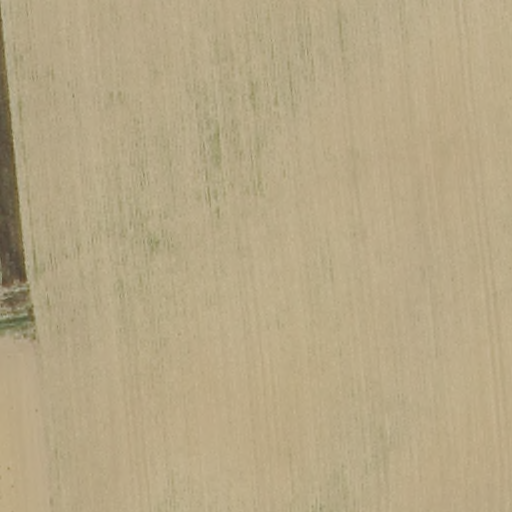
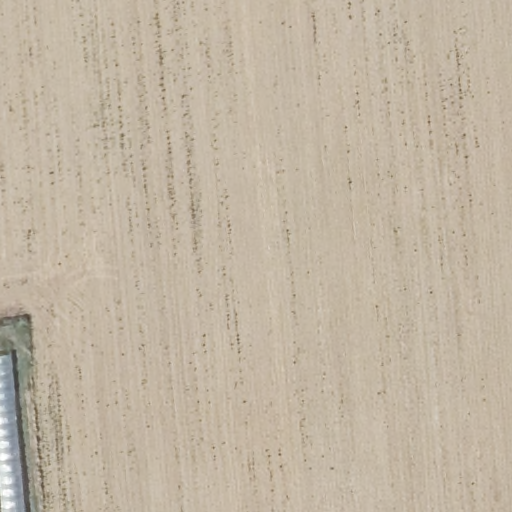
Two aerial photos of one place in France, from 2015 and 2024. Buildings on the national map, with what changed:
new [(25,512),(0,512),(0,353),(10,352),(25,512)]

